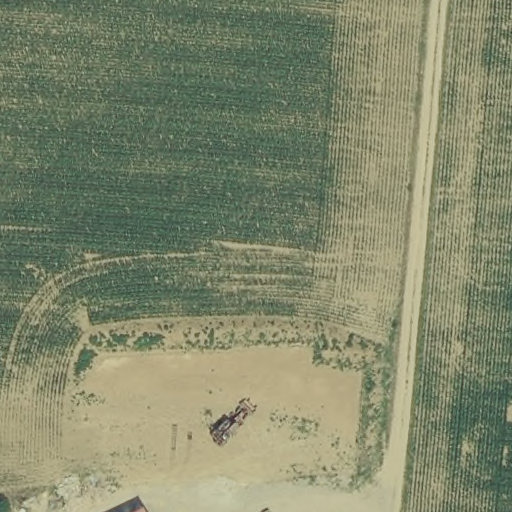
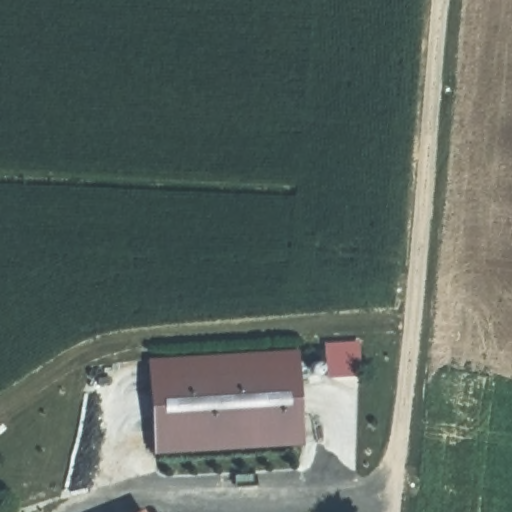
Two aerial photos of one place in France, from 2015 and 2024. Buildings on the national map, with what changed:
new [(304,447),(154,454),(145,357),(296,349),(304,447)]
unchanged [(143,512),(136,512),(141,509),(143,512)]

